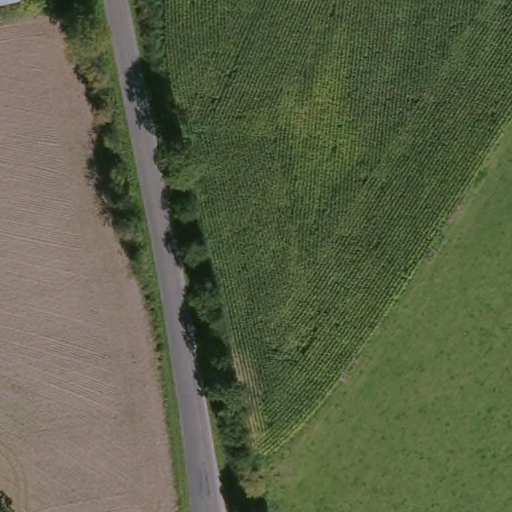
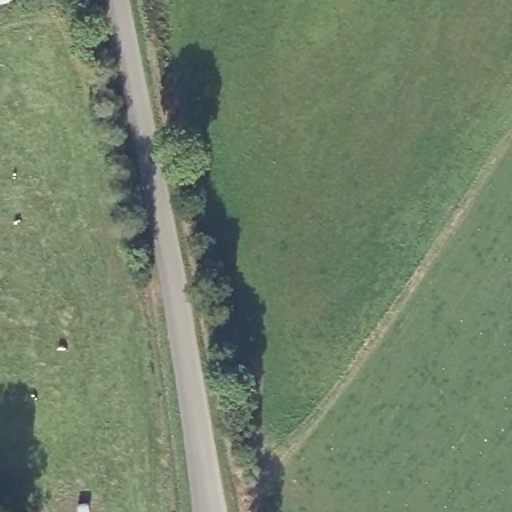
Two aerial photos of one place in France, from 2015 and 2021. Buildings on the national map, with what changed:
unchanged [(28,5),(0,9),(0,0),(27,0),(28,5)]

